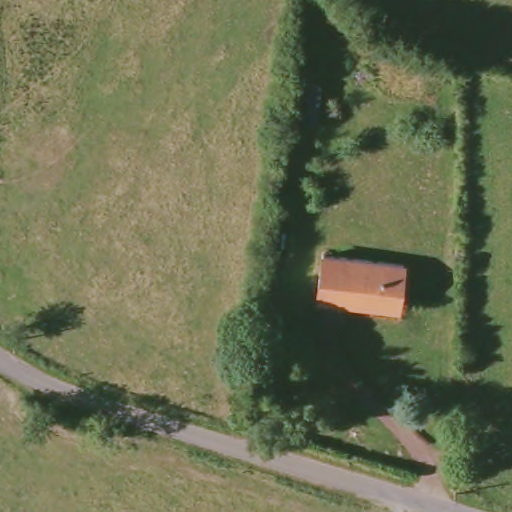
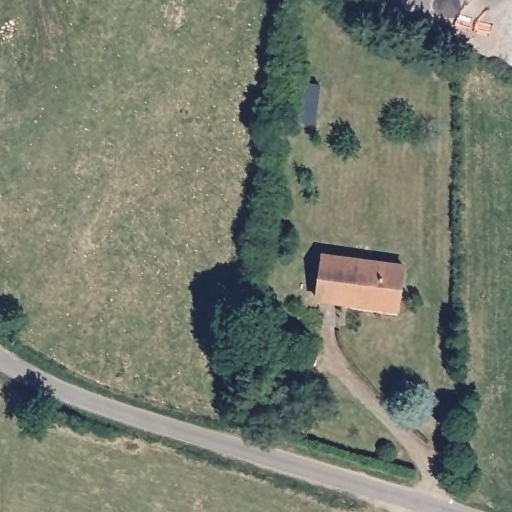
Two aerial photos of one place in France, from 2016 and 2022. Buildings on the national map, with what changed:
unchanged [(294,81),(320,84),(315,121),(289,117),(294,81)]
unchanged [(399,265),(394,303),(357,298),(356,304),(312,298),(318,254),(399,265)]
unchanged [(356,304),(394,303),(393,309),(356,304)]

